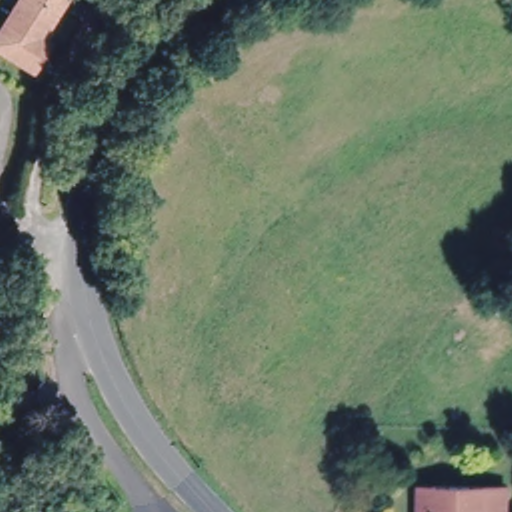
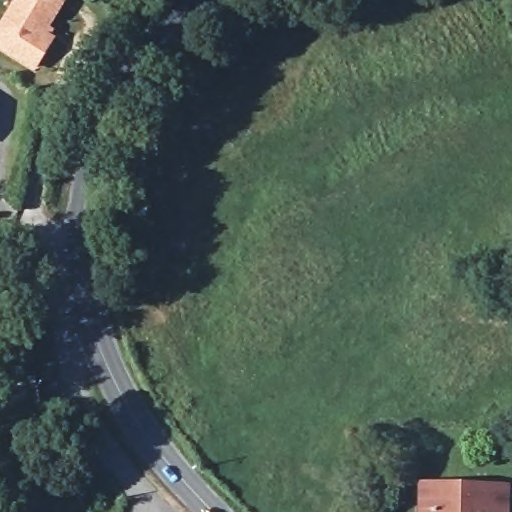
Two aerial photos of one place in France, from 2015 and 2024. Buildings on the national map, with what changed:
unchanged [(49,39),(33,67),(0,49),(0,29),(16,0),(61,0),(45,27),(51,29),(46,38),(49,39)]
unchanged [(421,512),(422,484),(432,484),(508,485),(507,512),(421,512)]

